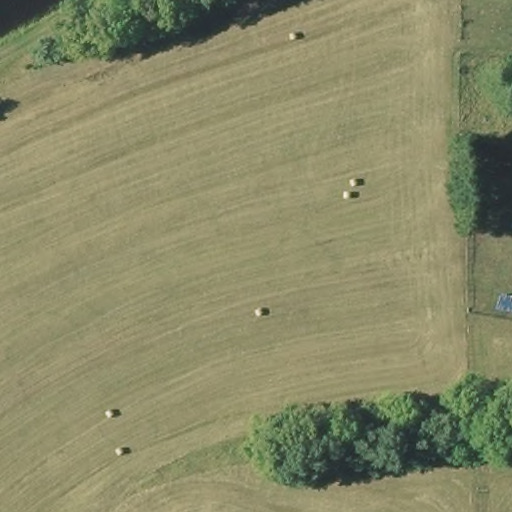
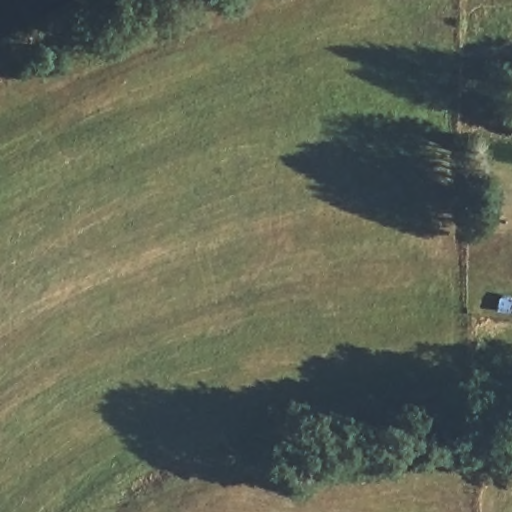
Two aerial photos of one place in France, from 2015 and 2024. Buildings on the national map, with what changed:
[]

